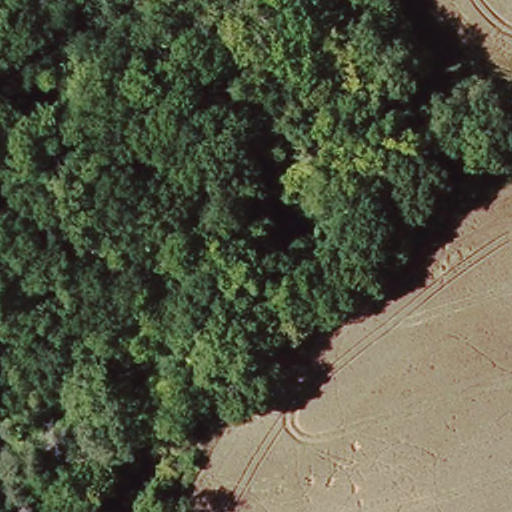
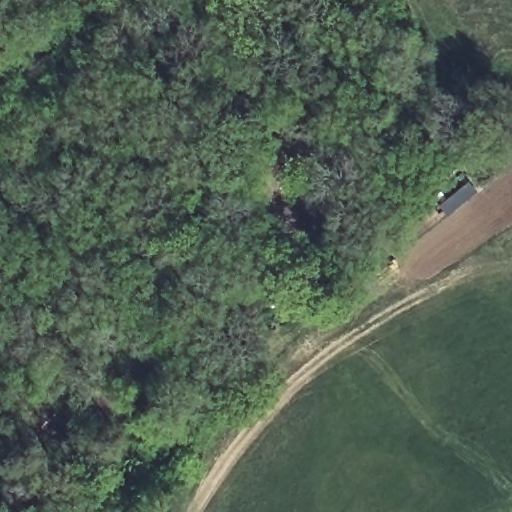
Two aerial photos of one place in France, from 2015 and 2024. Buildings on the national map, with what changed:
unchanged [(88,502),(107,512),(82,512),(88,502)]

